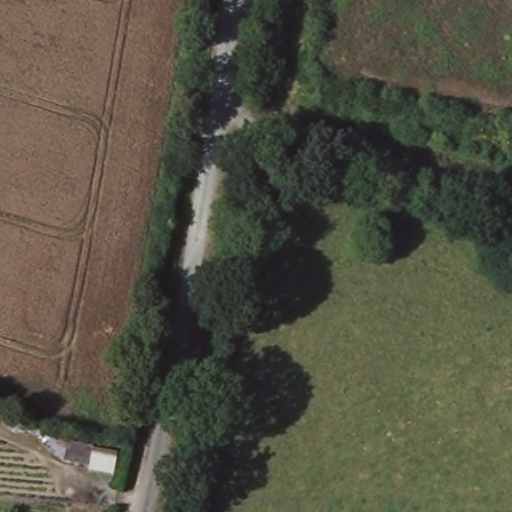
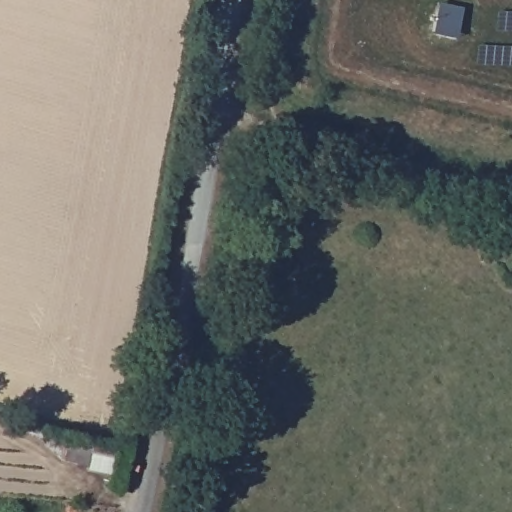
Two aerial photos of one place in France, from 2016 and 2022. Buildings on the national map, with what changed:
new [(432,33),(438,2),(463,8),(457,39),(432,33)]
unchanged [(47,437),(115,453),(111,471),(60,459),(45,446),(47,437)]

